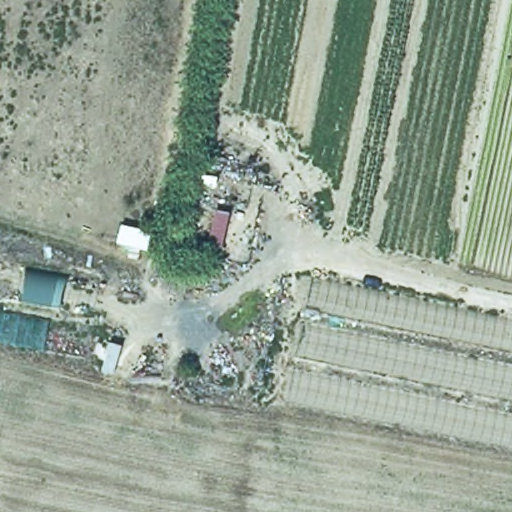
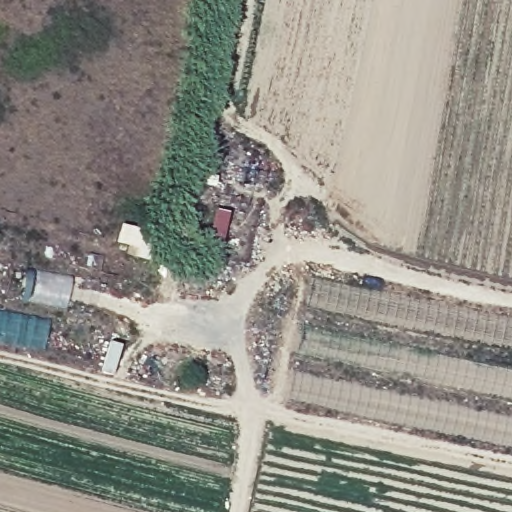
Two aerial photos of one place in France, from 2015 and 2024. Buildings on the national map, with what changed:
unchanged [(230,208),(222,249),(206,249),(213,204),(230,208)]

